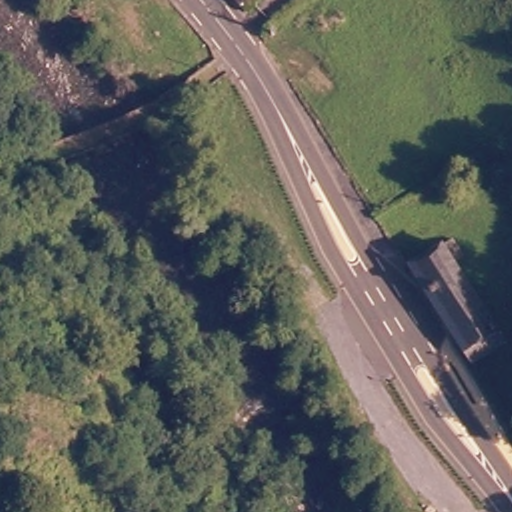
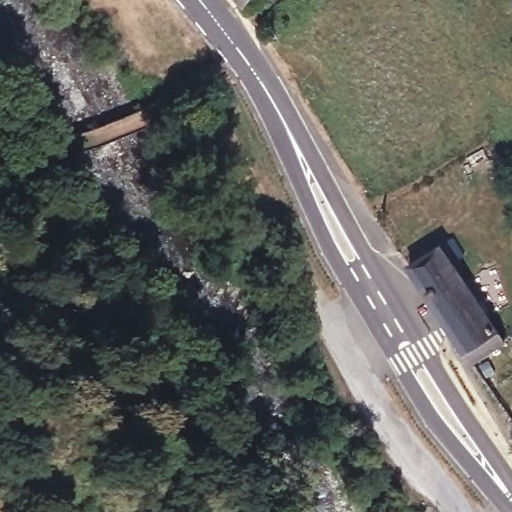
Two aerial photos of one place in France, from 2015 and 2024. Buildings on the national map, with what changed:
unchanged [(235,0),(241,0),(239,4),(235,0)]
unchanged [(404,271),(446,244),(457,260),(447,265),(499,346),(467,366),(404,271)]

